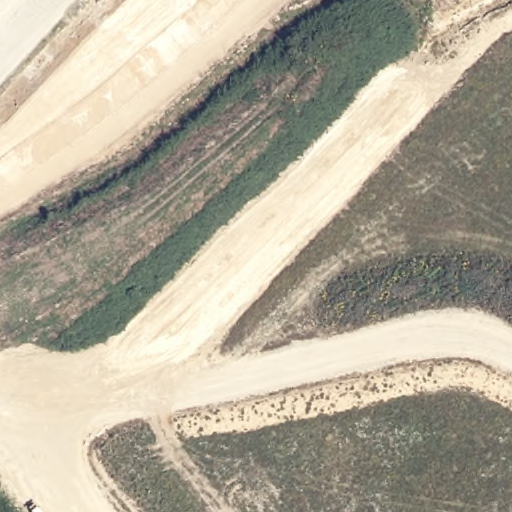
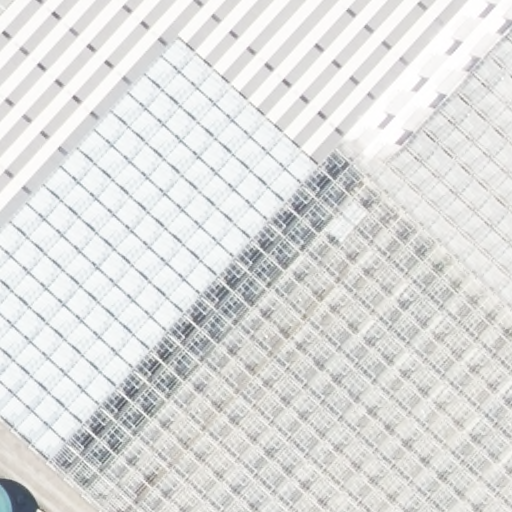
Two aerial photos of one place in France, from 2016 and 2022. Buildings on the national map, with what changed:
new [(512,0),(512,512),(104,512),(0,416),(0,0),(512,0)]
new [(9,500),(10,512),(0,512),(0,489),(9,500)]

